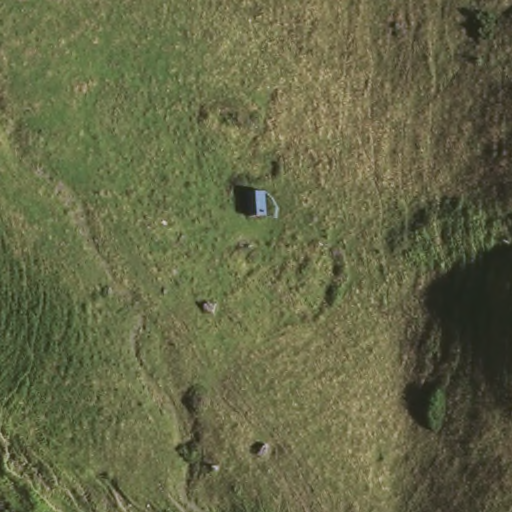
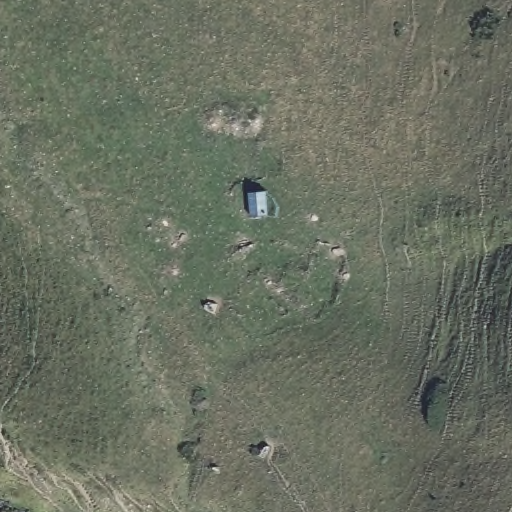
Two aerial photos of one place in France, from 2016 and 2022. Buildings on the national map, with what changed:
unchanged [(264,191),(265,218),(247,218),(247,190),(264,191)]

